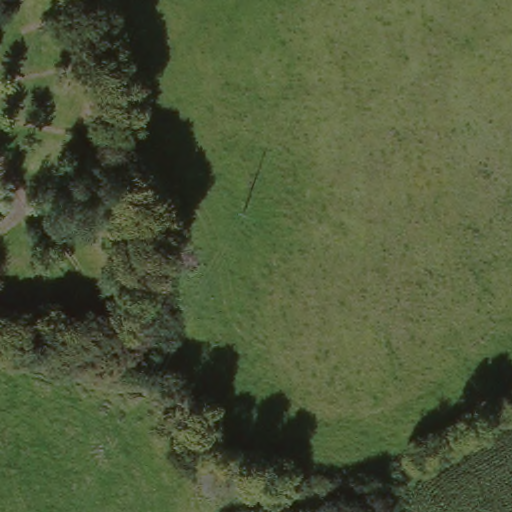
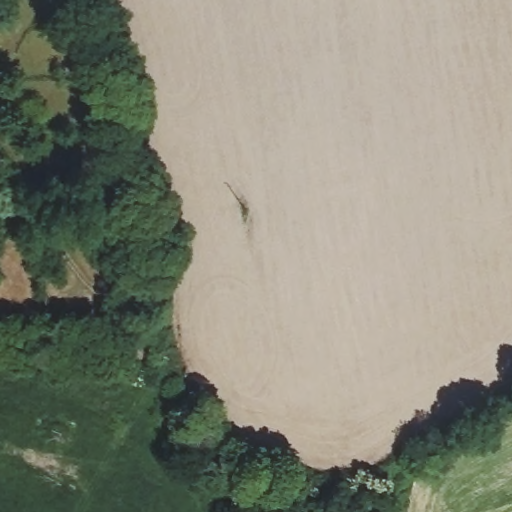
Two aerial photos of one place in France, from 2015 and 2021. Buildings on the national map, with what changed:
[]

